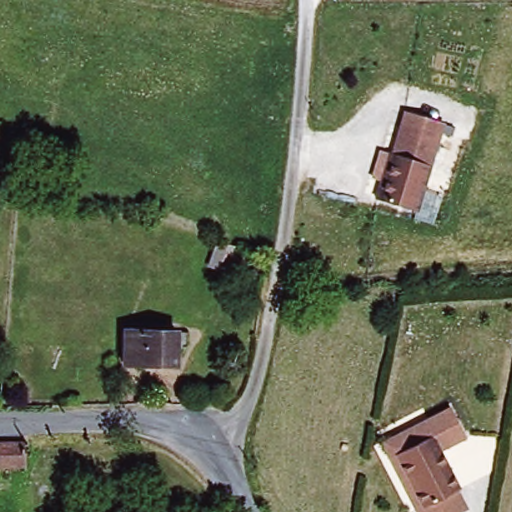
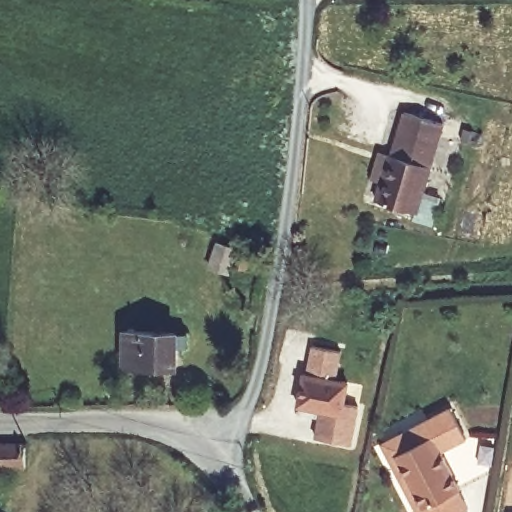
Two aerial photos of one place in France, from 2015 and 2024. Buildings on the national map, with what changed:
unchanged [(419,214),(378,202),(391,155),(394,156),(406,114),(444,124),(419,214)]
unchanged [(239,251),(231,274),(211,268),(219,244),(239,251)]
unchanged [(126,332),(178,334),(176,368),(125,366),(126,332)]
new [(343,352),(339,378),(349,381),(345,402),(359,405),(351,444),(314,437),(319,412),(299,407),(309,345),(343,352)]
unchanged [(396,435),(447,409),(464,441),(438,454),(458,491),(455,493),(465,512),(413,512),(378,444),(396,435)]
unchanged [(26,464),(0,464),(0,439),(26,439),(26,464)]

